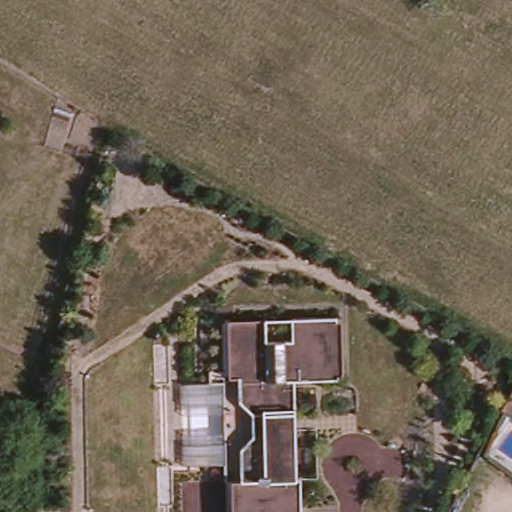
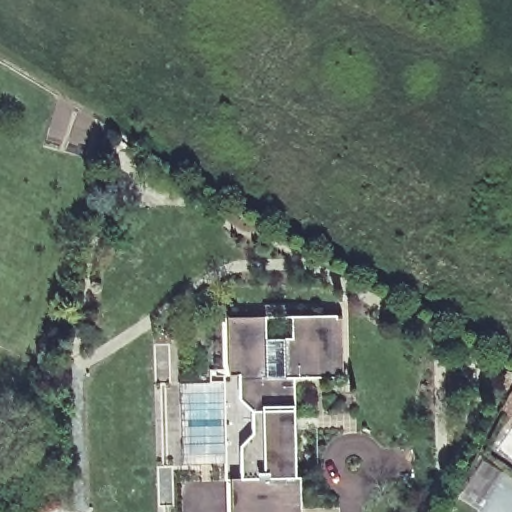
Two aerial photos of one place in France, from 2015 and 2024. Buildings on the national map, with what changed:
unchanged [(244,481),(242,447),(255,434),(255,413),(241,401),(235,401),(235,358),(234,324),(266,323),(267,340),(294,339),(293,317),(338,316),(338,319),(343,319),(345,375),(340,375),(340,378),(296,379),(297,412),(292,412),(293,433),(297,433),(298,478),(302,478),(303,509),(304,512),(249,512),(248,481),(244,481)]
unchanged [(227,465),(182,467),(180,383),(225,382),(227,465)]
unchanged [(500,411),(512,390),(512,417),(500,411)]

